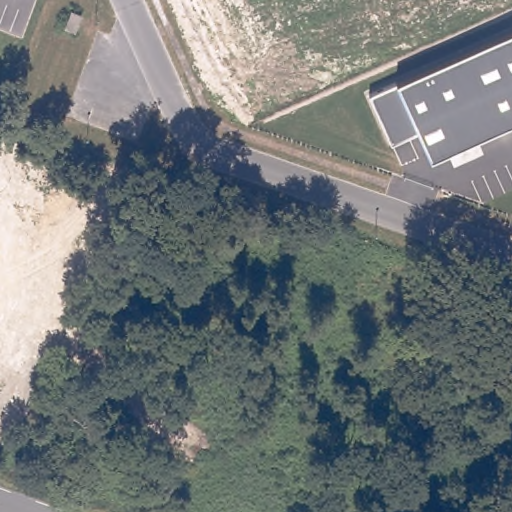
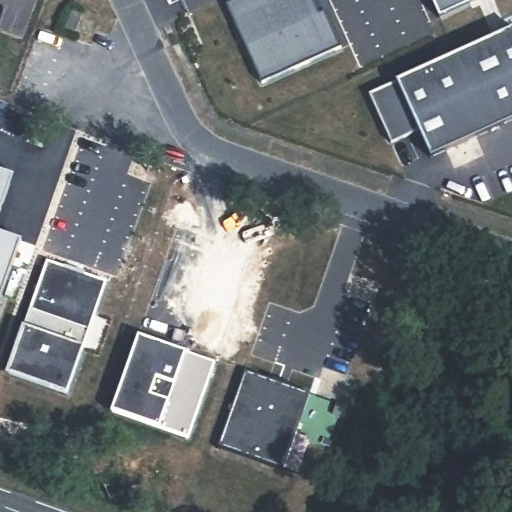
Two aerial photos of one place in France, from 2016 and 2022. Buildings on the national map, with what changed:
new [(324,0),(344,48),(264,82),(230,2),(235,0),(324,0)]
new [(441,0),(479,0),(447,13),(441,0)]
unchanged [(80,16),(74,33),(64,29),(70,12),(80,16)]
unchanged [(391,143),(369,93),(398,81),(512,29),(512,122),(431,158),(419,131),(391,143)]
new [(10,374),(48,263),(106,283),(69,394),(10,374)]
demolished [(71,320),(61,316),(70,297),(80,301),(71,320)]
new [(139,338),(216,362),(192,439),(114,414),(139,338)]
new [(245,371),(308,393),(282,466),(219,445),(245,371)]

